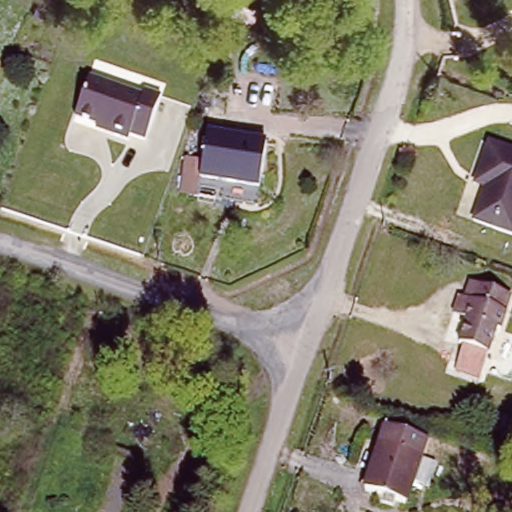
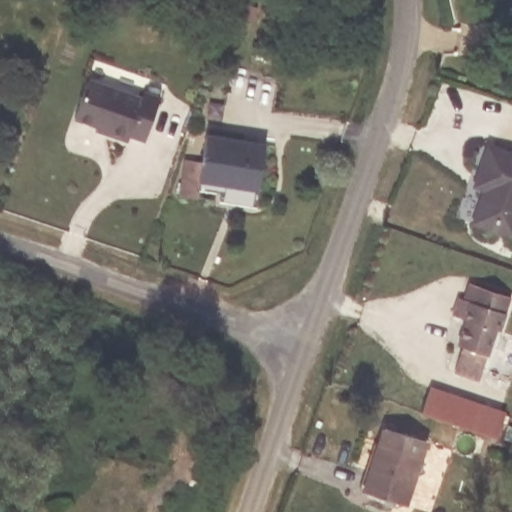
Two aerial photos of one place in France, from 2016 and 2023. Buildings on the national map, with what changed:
unchanged [(83,84),(136,102),(138,97),(156,102),(141,146),(125,140),(123,145),(101,137),(103,133),(70,122),(83,84)]
unchanged [(193,156),(207,158),(211,136),(266,145),(261,177),(208,169),(204,189),(189,187),(193,156)]
unchanged [(472,187),(475,179),(487,146),(512,154),(512,236),(472,224),(483,191),(472,187)]
unchanged [(469,317),(475,302),(466,298),(472,282),(512,296),(512,301),(508,313),(502,329),(497,327),(489,352),(465,343),(474,319),(469,317)]
new [(422,413),(430,387),(506,412),(497,438),(422,413)]
unchanged [(429,482),(416,478),(408,500),(399,496),(396,504),(378,497),(379,491),(368,487),(375,467),(362,464),(369,441),(384,446),(391,427),(430,442),(424,458),(436,462),(429,482)]
unchanged [(482,492),(508,491),(509,505),(483,507),(482,492)]

